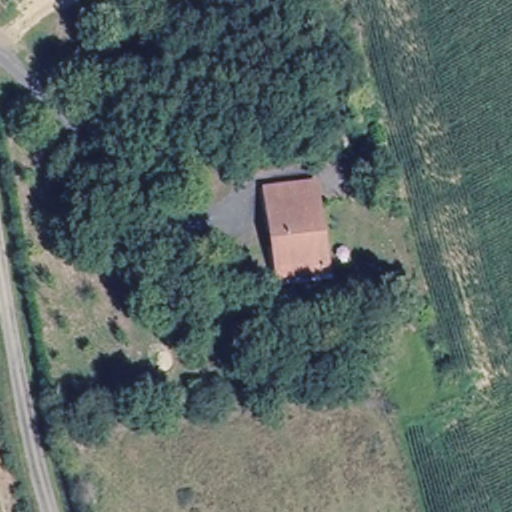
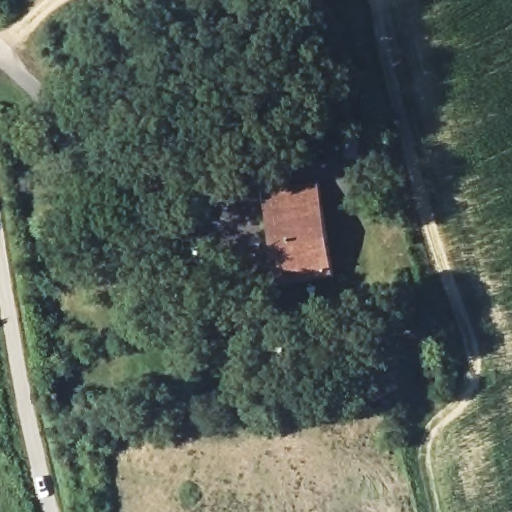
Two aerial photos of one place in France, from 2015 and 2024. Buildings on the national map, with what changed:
unchanged [(282,273),(270,187),(302,184),(318,181),(320,197),(329,267),(282,273)]

